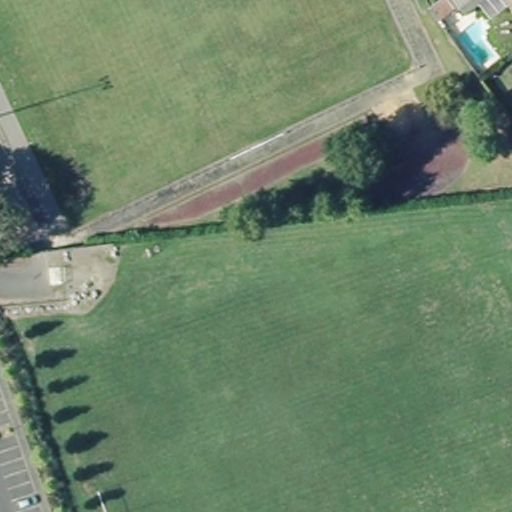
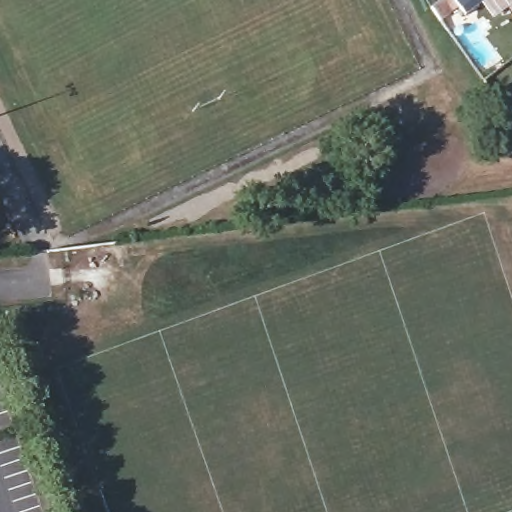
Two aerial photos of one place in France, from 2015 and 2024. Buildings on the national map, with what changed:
unchanged [(470,15),(465,8),(448,21),(437,6),(445,0),(512,0),(512,7),(496,18),(486,4),(470,15)]

